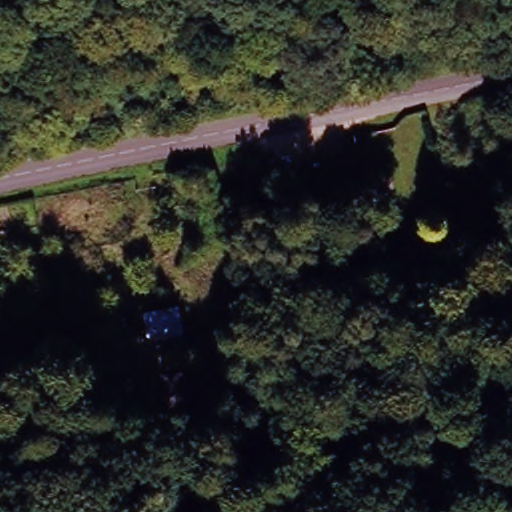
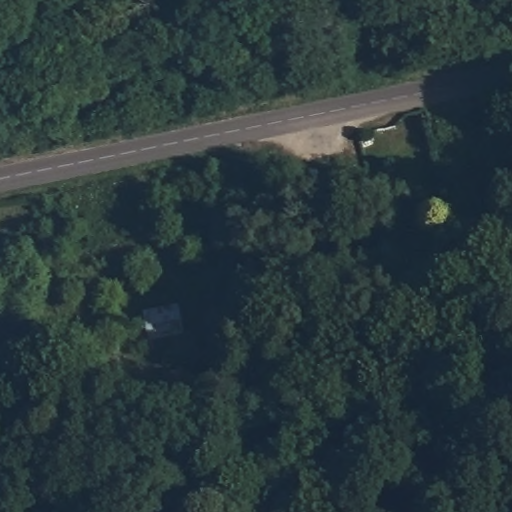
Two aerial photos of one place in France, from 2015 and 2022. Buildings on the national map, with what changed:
unchanged [(431,246),(436,272),(404,276),(397,251),(431,246)]
unchanged [(182,305),(188,332),(152,337),(144,310),(182,305)]

